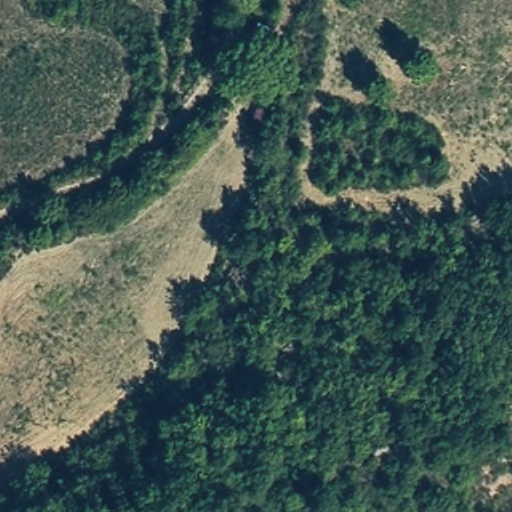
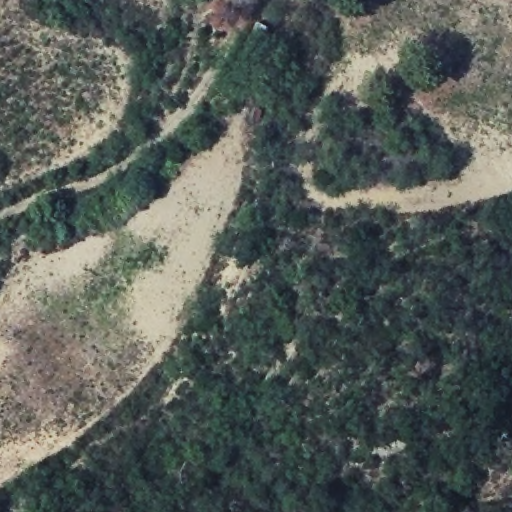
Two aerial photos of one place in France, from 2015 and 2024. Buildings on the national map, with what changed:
unchanged [(267,27),(259,51),(244,45),(252,22),(267,27)]

